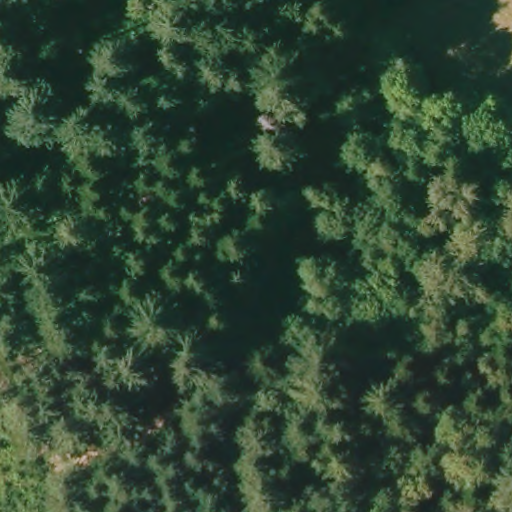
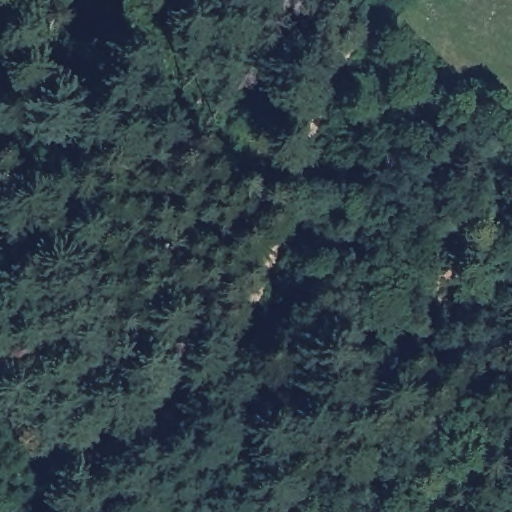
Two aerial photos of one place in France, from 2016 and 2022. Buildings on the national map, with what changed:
[]

